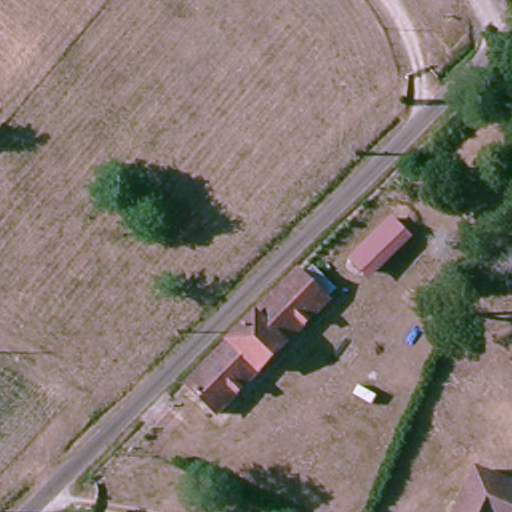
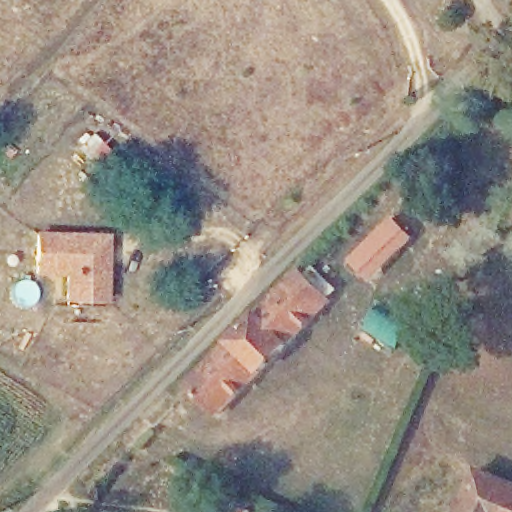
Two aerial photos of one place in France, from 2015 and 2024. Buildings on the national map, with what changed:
unchanged [(413,237),(371,280),(349,259),(391,217),(413,237)]
new [(108,233),(107,302),(65,302),(64,275),(35,275),(35,231),(108,233)]
unchanged [(302,268),(327,293),(217,403),(196,380),(302,268)]
unchanged [(456,512),(470,466),(512,480),(512,512),(456,512)]

